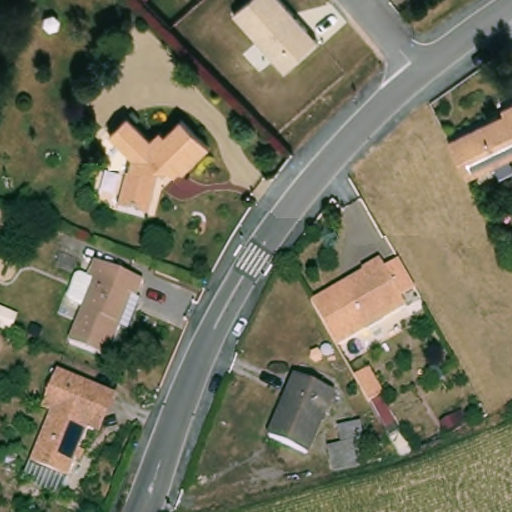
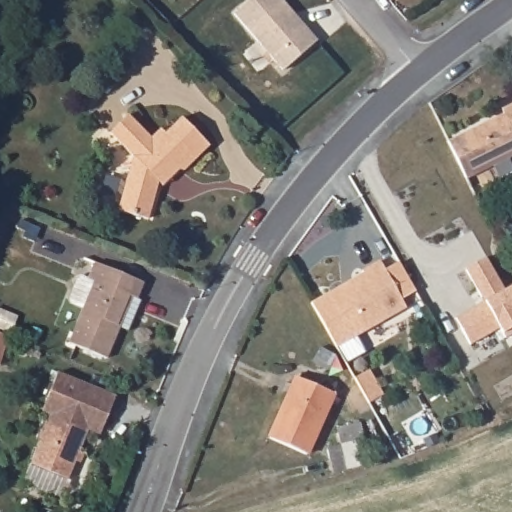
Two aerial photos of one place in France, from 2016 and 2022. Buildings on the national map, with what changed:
unchanged [(250,0),(283,0),(317,40),(283,71),(234,15),(250,0)]
unchanged [(463,180),(445,142),(499,116),(497,112),(512,104),(512,156),(463,180)]
unchanged [(147,138),(177,115),(204,147),(174,171),(163,169),(152,177),(141,218),(111,211),(125,158),(111,141),(101,127),(124,111),(147,138)]
new [(484,302),(465,269),(485,258),(504,291),(512,286),(512,334),(505,338),(499,328),(470,345),(455,318),(484,302)]
unchanged [(142,283),(135,299),(128,296),(115,325),(120,327),(106,357),(65,340),(93,279),(87,277),(94,262),(142,283)]
unchanged [(346,286),(348,288),(354,284),(353,282),(364,276),(363,273),(381,263),(407,310),(338,349),(312,305),(346,286)]
unchanged [(120,387),(103,432),(91,425),(62,497),(22,480),(52,413),(41,409),(58,365),(120,387)]
unchanged [(369,372),(384,397),(370,406),(355,381),(369,372)]
unchanged [(334,391),(306,453),(270,437),(297,375),(334,391)]
unchanged [(339,453),(367,444),(370,453),(386,450),(392,465),(388,466),(348,477),(339,453)]

